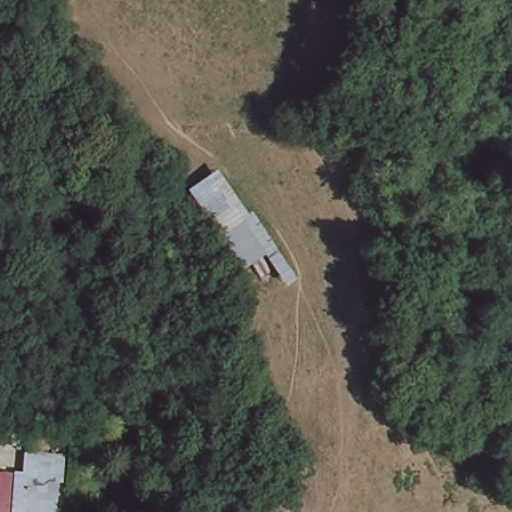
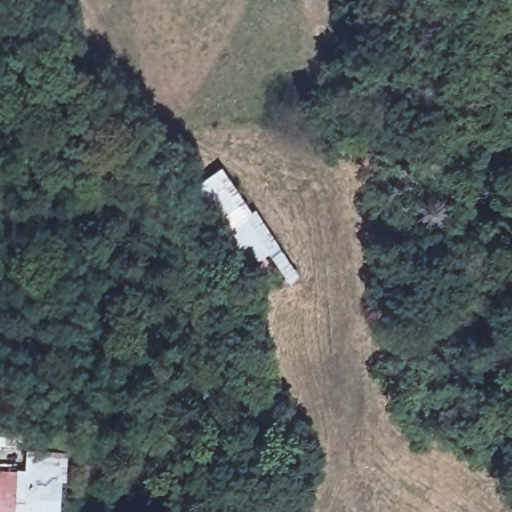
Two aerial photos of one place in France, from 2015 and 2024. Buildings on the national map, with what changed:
unchanged [(253,213),(224,241),(190,189),(221,168),(253,213)]
unchanged [(59,498),(32,497),(31,512),(0,512),(0,476),(27,477),(27,472),(49,473),(50,459),(61,460),(59,498)]

